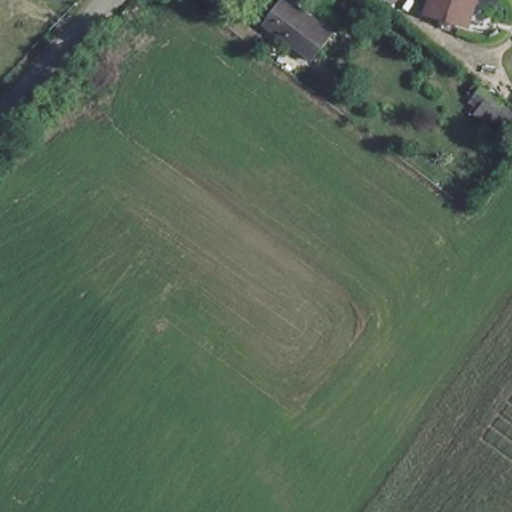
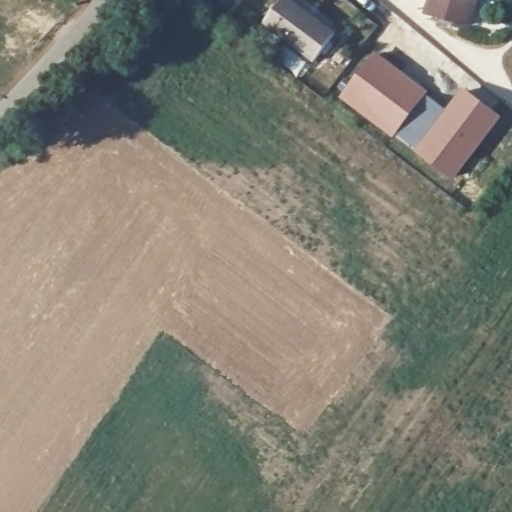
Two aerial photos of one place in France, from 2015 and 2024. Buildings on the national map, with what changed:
unchanged [(297,0),(337,30),(317,56),(268,18),(284,0),(297,0)]
unchanged [(434,12),(437,0),(477,0),(470,23),(434,12)]
new [(345,98),(375,57),(425,94),(394,133),(345,98)]
demolished [(509,123),(502,131),(480,115),(486,108),(475,98),(485,85),(512,106),(512,125),(509,123)]
new [(415,151),(462,89),(501,117),(452,180),(415,151)]

